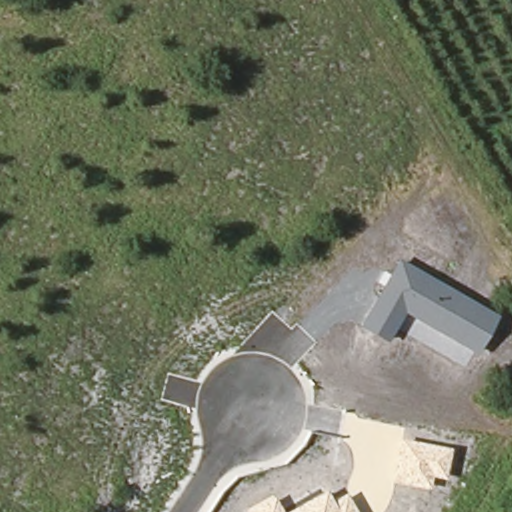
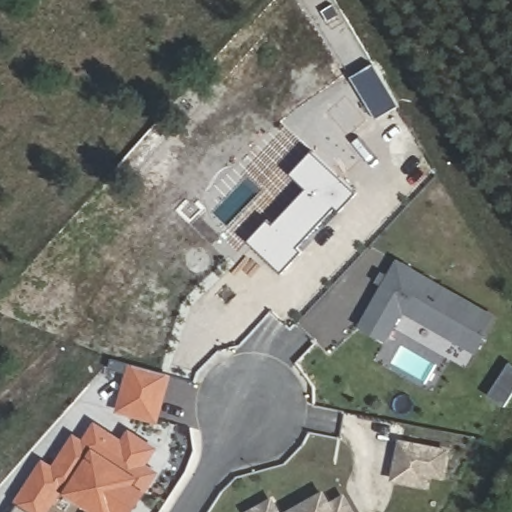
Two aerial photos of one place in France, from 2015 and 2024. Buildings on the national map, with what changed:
new [(272,225),(307,188),(292,173),(312,151),(357,192),(340,211),(335,206),(298,247),(303,251),(283,272),(250,240),(268,220),(272,225)]
unchanged [(472,352),(404,315),(386,346),(358,327),(397,260),(495,317),(472,352)]
new [(133,368),(168,377),(156,422),(121,413),(133,368)]
new [(56,471),(76,438),(85,444),(97,426),(125,443),(131,432),(154,446),(143,463),(155,470),(143,490),(144,490),(139,498),(134,495),(127,506),(132,509),(131,512),(96,512),(98,508),(64,487),(48,512),(15,512),(45,464),(56,471)]
unchanged [(444,481),(429,478),(426,490),(388,483),(396,436),(452,448),(444,481)]
unchanged [(332,499),(345,492),(356,512),(287,512),(327,490),(332,499)]
unchanged [(280,512),(247,512),(272,497),(280,512)]

